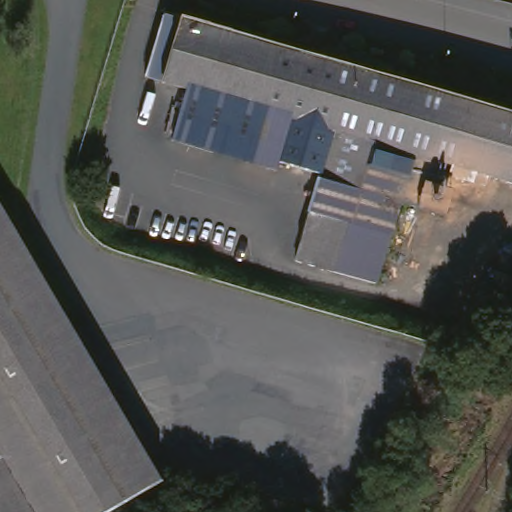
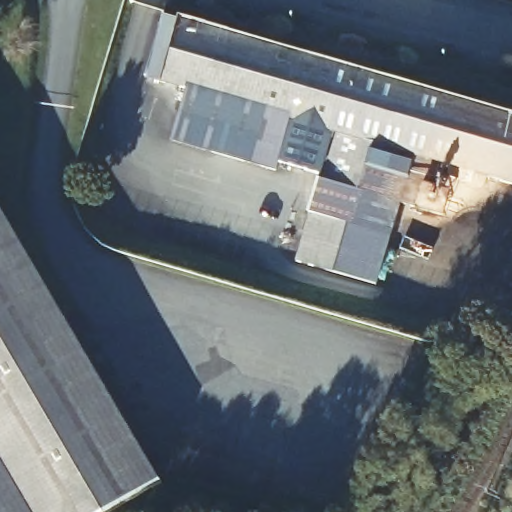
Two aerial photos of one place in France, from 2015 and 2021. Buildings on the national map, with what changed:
unchanged [(512,119),(512,186),(409,156),(372,285),(289,261),(328,132),(286,120),(271,172),(166,141),(181,90),(157,83),(158,81),(141,77),(158,18),(174,22),(175,20),(512,119)]
unchanged [(107,512),(0,512),(0,216),(158,482),(107,512)]

